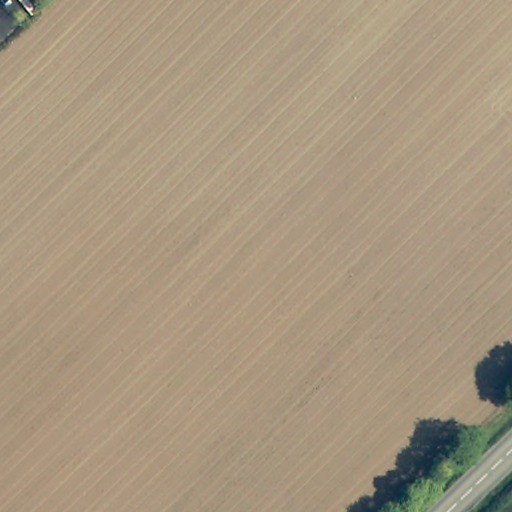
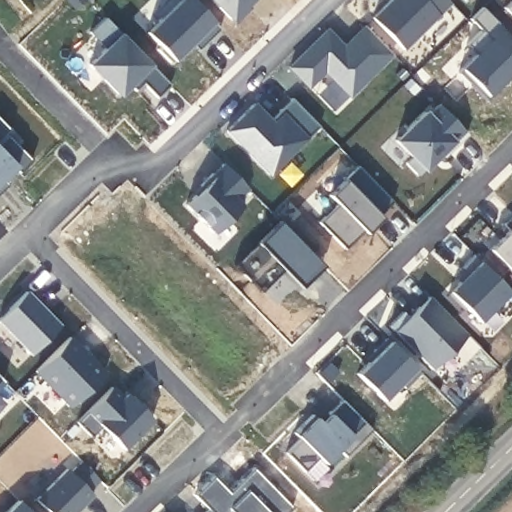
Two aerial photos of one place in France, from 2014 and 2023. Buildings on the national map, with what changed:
new [(199,37),(172,65),(157,49),(160,46),(148,32),(160,19),(154,12),(166,0),(194,0),(221,29),(206,46),(199,37)]
new [(212,0),(255,0),(235,22),(212,0)]
new [(446,0),(450,4),(403,51),(374,17),(392,0),(446,0)]
new [(503,7),(510,0),(512,0),(512,16),(503,7)]
new [(506,75),(510,78),(486,101),(458,72),(475,54),(466,44),(480,30),(470,19),(482,7),(512,38),(512,69),(506,75)]
new [(159,98),(146,86),(138,94),(130,84),(119,95),(106,81),(94,91),(70,64),(96,38),(90,30),(105,17),(171,85),(159,98)]
new [(349,95),(324,70),(308,86),(289,67),(325,29),(344,48),(365,26),(391,54),(349,95)]
new [(271,177),(225,132),(255,102),(272,117),(292,99),(319,127),(271,177)]
new [(443,157),(439,153),(417,175),(405,162),(411,157),(394,140),(424,111),(427,115),(438,104),(467,134),(443,157)]
new [(33,161),(21,172),(16,167),(4,179),(10,184),(0,193),(0,120),(11,132),(6,136),(33,161)]
new [(248,189),(237,199),(242,205),(213,234),(184,205),(202,188),(199,186),(222,163),(248,189)]
new [(382,217),(365,235),(344,251),(318,224),(337,205),(327,195),(345,179),(359,166),(395,202),(382,217)]
new [(489,249),(509,230),(504,225),(512,215),(512,272),(489,249)]
new [(260,290),(234,265),(278,222),(305,248),(260,290)]
new [(481,323),(449,292),(465,275),(460,270),(474,256),(510,293),(481,323)]
new [(30,354),(0,323),(0,317),(26,292),(60,326),(30,354)]
new [(432,370),(388,326),(402,312),(409,320),(430,298),(464,332),(432,370)]
new [(69,407),(34,371),(69,337),(104,372),(69,407)]
new [(420,372),(404,387),(399,383),(382,400),(356,373),(376,355),(373,351),(386,337),(420,372)]
new [(0,383),(0,379),(2,381),(0,383)]
new [(111,387),(122,398),(126,394),(152,420),(123,448),(101,427),(90,437),(75,422),(111,387)]
new [(372,431),(345,457),(338,450),(323,463),(317,457),(303,471),(285,453),(299,439),(293,433),(312,415),(320,423),(329,415),(328,413),(342,400),(372,431)]
new [(99,481),(89,491),(93,496),(76,512),(48,512),(35,500),(66,468),(71,473),(81,462),(99,481)]
new [(18,501),(29,512),(6,512),(18,501)]
new [(210,512),(204,512),(208,509),(210,512)]

